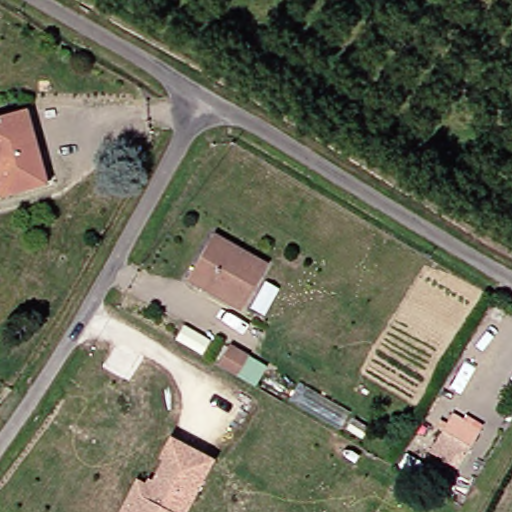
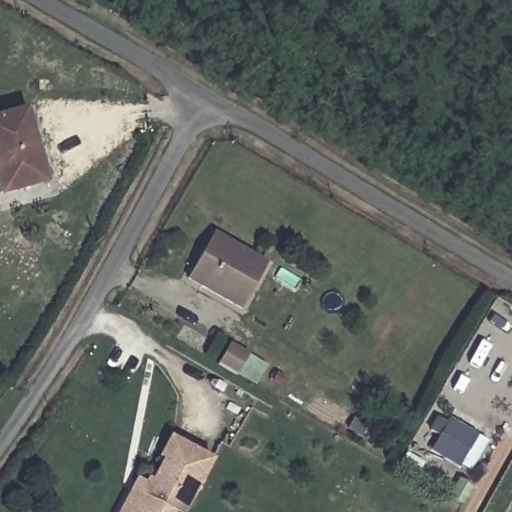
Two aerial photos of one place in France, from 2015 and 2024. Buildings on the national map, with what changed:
unchanged [(0,191),(0,118),(17,115),(27,150),(36,148),(43,181),(0,191)]
unchanged [(209,236),(260,267),(234,311),(182,280),(209,236)]
unchanged [(228,368),(237,351),(255,362),(246,378),(228,368)]
unchanged [(432,455),(455,412),(481,430),(457,470),(432,455)]
unchanged [(158,485),(170,462),(166,460),(177,440),(219,463),(191,512),(124,512),(134,495),(140,484),(149,489),(153,482),(158,485)]

